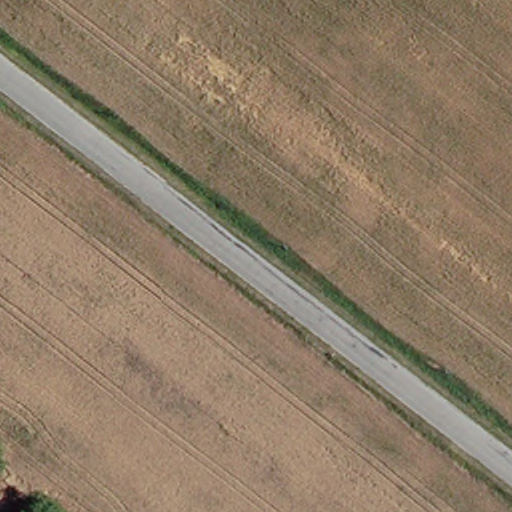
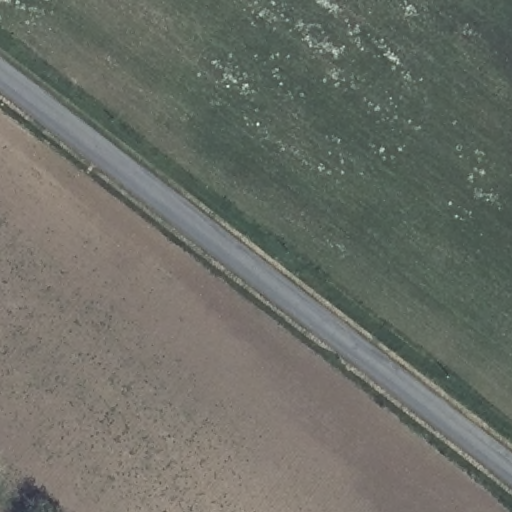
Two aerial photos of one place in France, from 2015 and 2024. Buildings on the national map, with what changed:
[]

